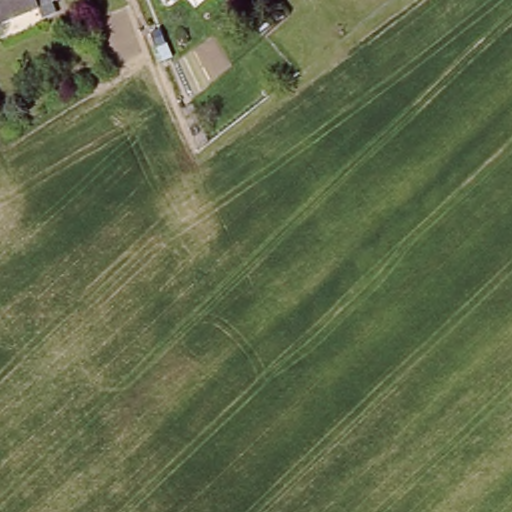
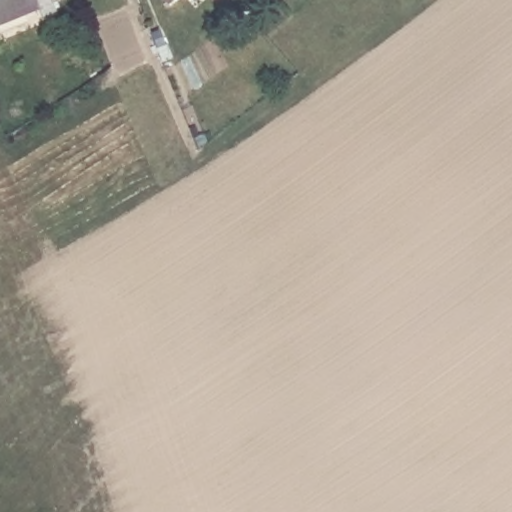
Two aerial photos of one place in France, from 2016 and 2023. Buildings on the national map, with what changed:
unchanged [(37,9),(0,25),(0,0),(50,0),(51,3),(55,14),(42,19),(37,9)]

